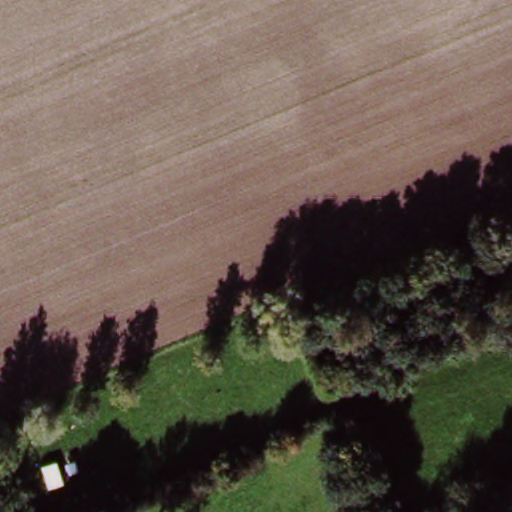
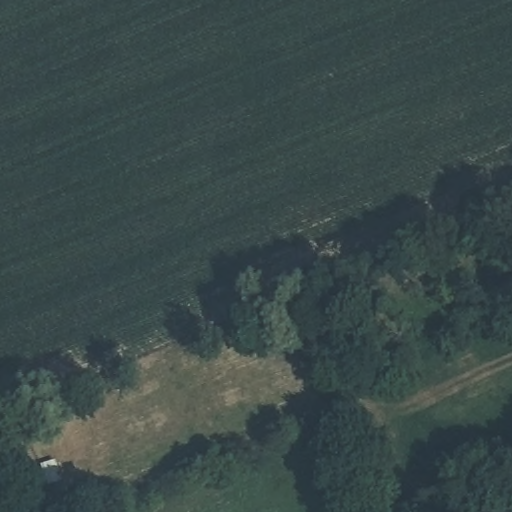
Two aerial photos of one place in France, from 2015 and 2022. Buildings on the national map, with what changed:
[]

